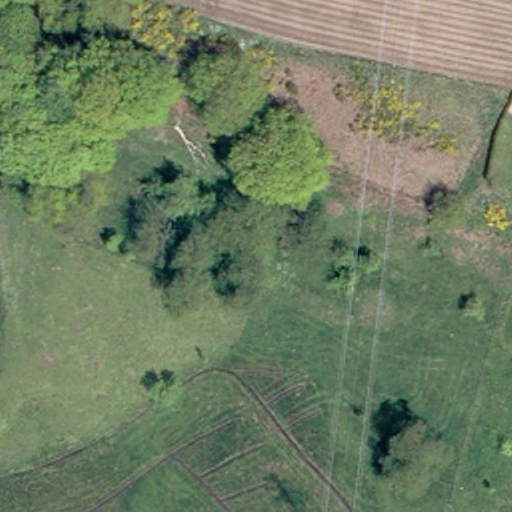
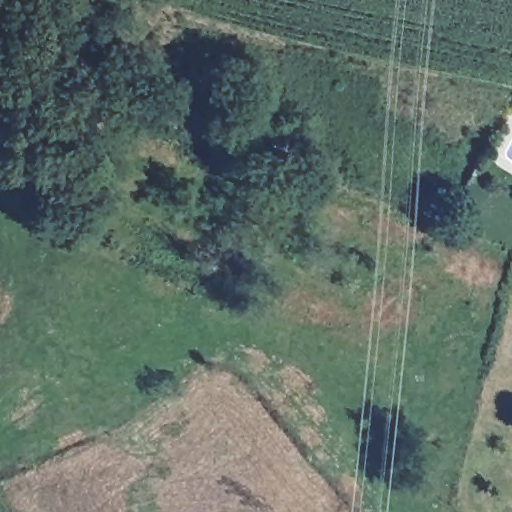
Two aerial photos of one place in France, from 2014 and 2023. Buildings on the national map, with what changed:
[]

